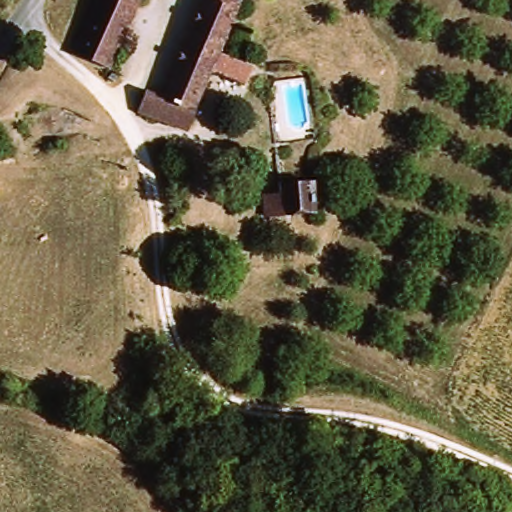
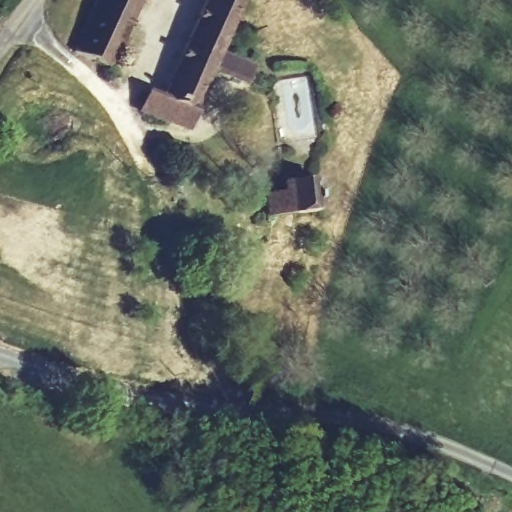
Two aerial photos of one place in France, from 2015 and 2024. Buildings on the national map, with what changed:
unchanged [(69,49),(90,0),(134,0),(106,65),(69,49)]
unchanged [(140,94),(144,89),(167,98),(204,0),(236,0),(239,1),(218,53),(254,68),(248,85),(212,70),(189,132),(140,112),(144,103),(140,94)]
unchanged [(280,191),(280,184),(311,187),(310,217),(262,214),(263,190),(280,191)]

